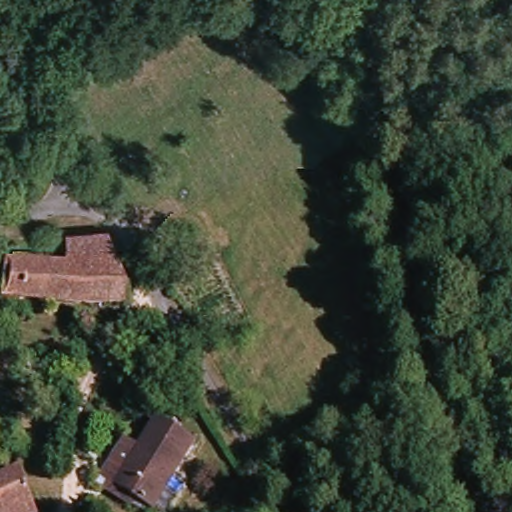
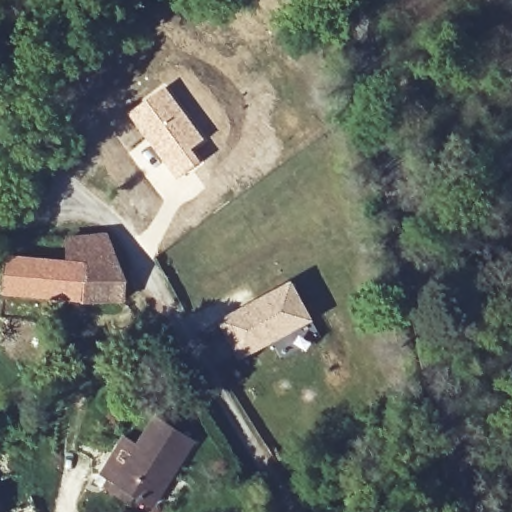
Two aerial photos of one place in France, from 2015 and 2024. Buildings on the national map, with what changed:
new [(165,84),(205,139),(193,150),(201,160),(178,178),(126,114),(165,84)]
unchanged [(63,296),(5,295),(7,260),(67,261),(66,241),(104,235),(126,282),(123,302),(66,300),(63,296)]
new [(220,321),(293,280),(314,320),(240,360),(220,321)]
unchanged [(116,484),(156,417),(199,442),(159,509),(116,484)]
unchanged [(36,506),(38,512),(0,512),(0,478),(24,471),(36,506)]

